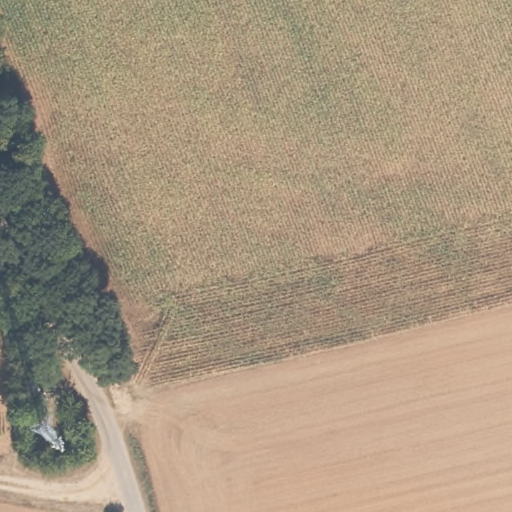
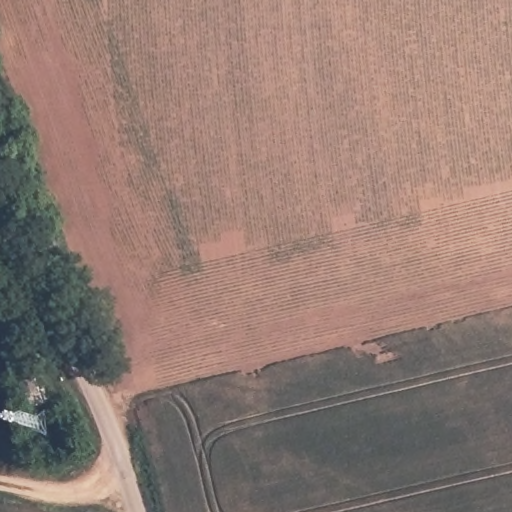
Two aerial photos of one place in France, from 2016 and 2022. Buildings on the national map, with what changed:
unchanged [(46,402),(29,407),(19,380),(38,372),(46,402)]

